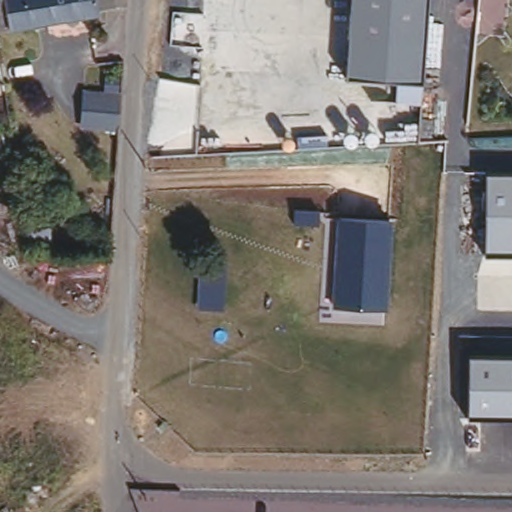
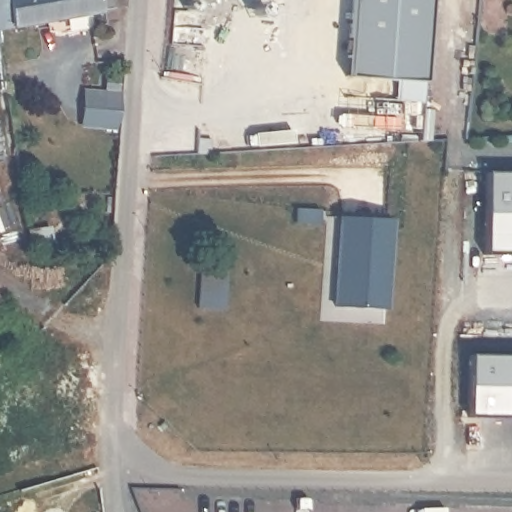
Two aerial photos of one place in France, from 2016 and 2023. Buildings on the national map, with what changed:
unchanged [(95,9),(6,25),(8,37),(0,38),(0,0),(93,0),(95,9)]
unchanged [(421,103),(395,102),(396,82),(346,76),(351,0),(429,0),(421,103)]
unchanged [(89,88),(124,92),(120,129),(85,127),(89,88)]
unchanged [(512,172),(512,256),(483,256),(486,172),(512,172)]
unchanged [(384,309),(338,308),(340,216),(390,219),(384,309)]
unchanged [(225,309),(198,308),(201,255),(228,257),(225,309)]
unchanged [(512,356),(512,420),(468,419),(469,356),(512,356)]

